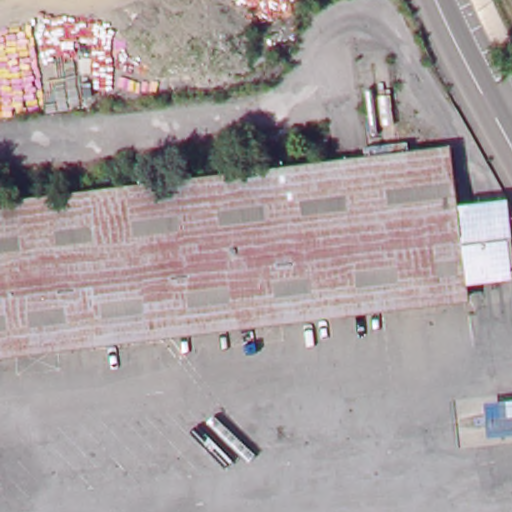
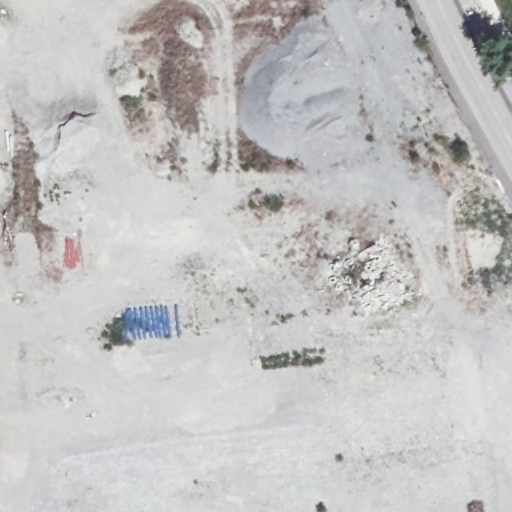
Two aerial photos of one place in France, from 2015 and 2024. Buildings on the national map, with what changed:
demolished [(0,354),(0,202),(454,145),(462,207),(472,286),(472,295),(0,354)]

